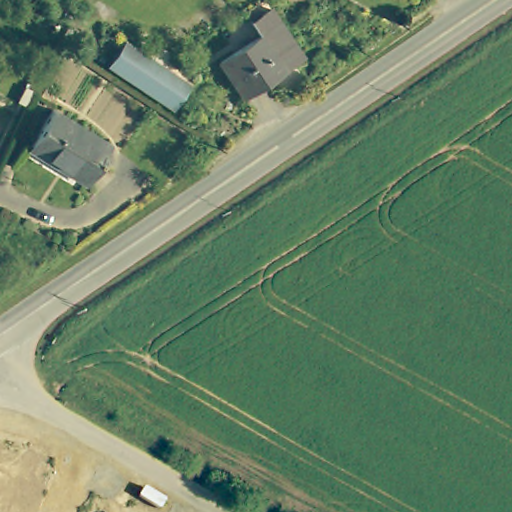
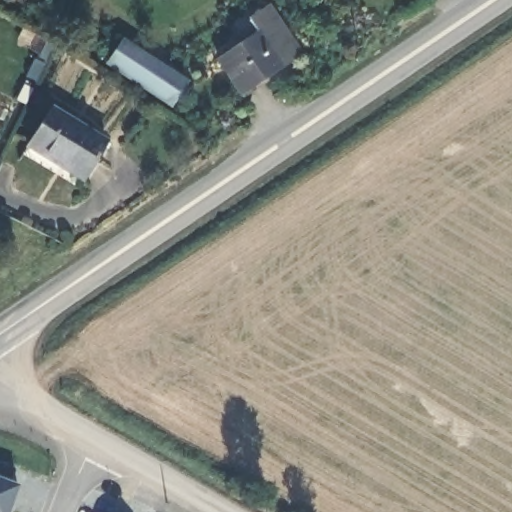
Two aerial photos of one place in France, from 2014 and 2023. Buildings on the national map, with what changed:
unchanged [(226,62),(265,35),(257,22),(277,8),(307,52),(249,95),(226,62)]
unchanged [(111,72),(127,47),(190,88),(173,113),(111,72)]
unchanged [(54,105),(109,139),(86,177),(61,160),(59,162),(30,144),(54,105)]
new [(10,483),(19,487),(10,512),(0,512),(0,464),(14,469),(10,483)]

